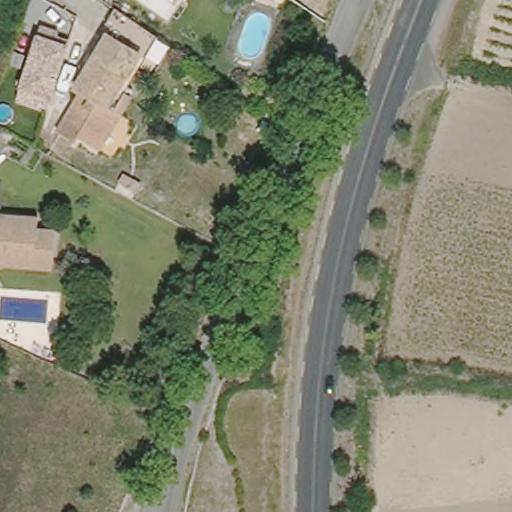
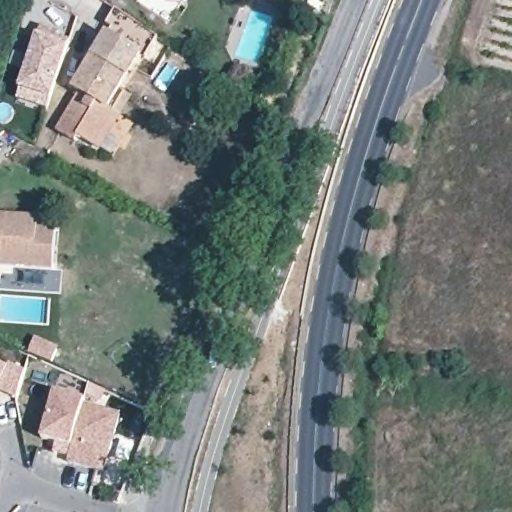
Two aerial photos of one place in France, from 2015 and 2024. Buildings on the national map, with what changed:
unchanged [(84,137),(81,142),(63,131),(86,92),(79,89),(111,35),(120,41),(133,17),(141,22),(163,37),(100,146),(84,137)]
unchanged [(26,97),(29,87),(50,26),(69,32),(67,37),(79,41),(77,46),(59,97),(55,107),(26,97)]
unchanged [(0,209),(39,212),(39,222),(57,224),(54,258),(54,266),(0,262),(0,209)]
new [(10,363),(25,371),(17,397),(0,389),(0,365),(8,369),(10,363)]
new [(104,473),(68,464),(70,457),(54,452),(56,442),(42,438),(55,392),(121,414),(104,473)]

